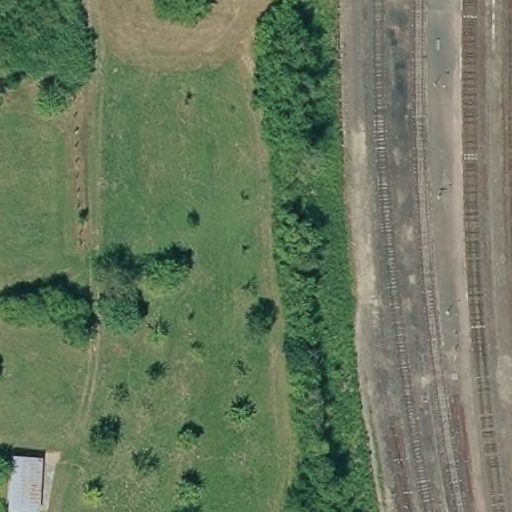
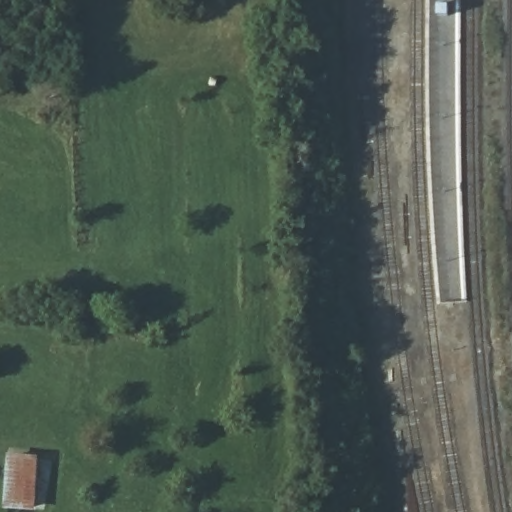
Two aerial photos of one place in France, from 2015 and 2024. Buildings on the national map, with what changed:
unchanged [(33,456),(30,512),(0,512),(0,455),(33,456)]

